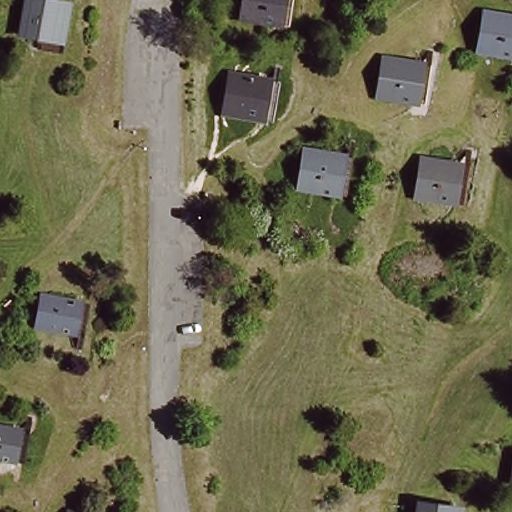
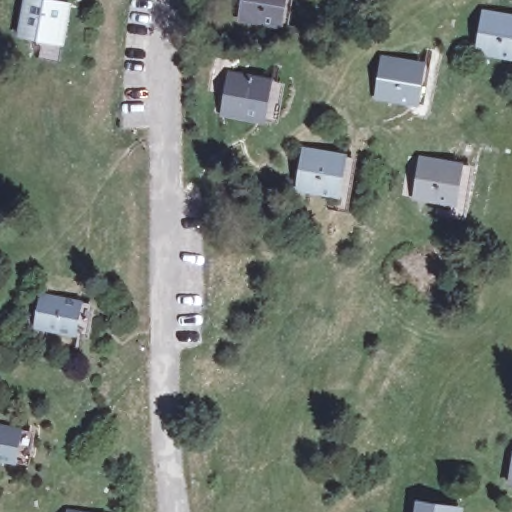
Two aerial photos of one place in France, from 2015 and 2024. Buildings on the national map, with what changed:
unchanged [(67,40),(59,39),(22,33),(29,0),(55,0),(66,2),(75,4),(67,40)]
unchanged [(285,24),(275,23),(238,18),(241,0),(289,0),(285,24)]
unchanged [(483,19),(512,23),(512,61),(476,56),(483,19)]
unchanged [(422,105),(413,104),(376,99),(381,62),(418,67),(428,68),(422,105)]
unchanged [(268,119),(259,117),(221,111),(228,74),(265,81),(275,82),(268,119)]
unchanged [(115,117),(115,128),(106,129),(107,117),(115,117)]
unchanged [(343,198),(335,196),(297,191),(303,153),(340,159),(350,161),(343,198)]
unchanged [(460,204),(451,203),(414,197),(420,160),(457,166),(466,167),(460,204)]
unchanged [(81,336),(71,335),(35,329),(40,297),(77,303),(87,304),(81,336)]
unchanged [(26,464),(16,463),(0,460),(0,427),(22,431),(31,432),(26,464)]
unchanged [(512,481),(512,487),(511,487),(512,481)]
unchanged [(417,512),(418,502),(455,507),(463,508),(463,512),(417,512)]

